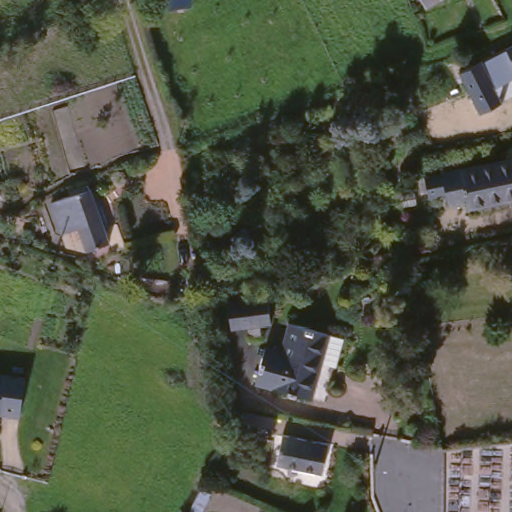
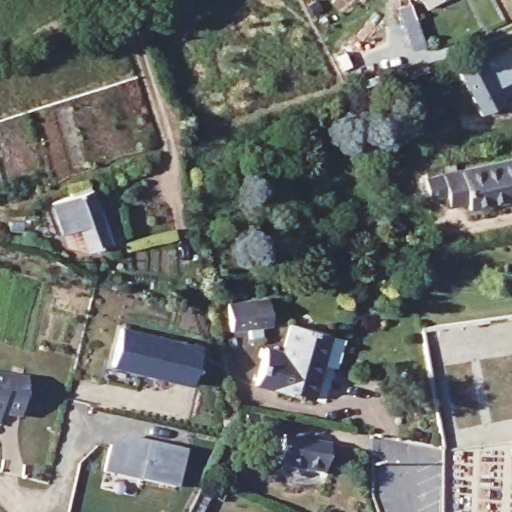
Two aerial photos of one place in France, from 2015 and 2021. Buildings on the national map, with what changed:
unchanged [(446,1),(428,10),(422,0),(448,0),(446,1)]
unchanged [(512,59),(508,50),(512,48),(512,59)]
unchanged [(459,74),(508,50),(512,59),(512,78),(493,86),(499,101),(479,113),(459,74)]
unchanged [(512,204),(469,211),(466,204),(449,205),(446,198),(426,198),(426,181),(443,172),(512,162),(512,204)]
unchanged [(115,245),(88,251),(83,233),(66,236),(56,205),(104,193),(115,245)]
unchanged [(230,302),(267,295),(273,327),(238,335),(230,302)]
unchanged [(336,371),(325,368),(314,401),(257,388),(266,352),(283,356),(291,327),(344,341),(336,371)]
new [(117,332),(196,350),(188,385),(173,382),(173,384),(109,369),(117,332)]
unchanged [(25,422),(4,420),(1,429),(0,429),(0,379),(29,385),(25,422)]
unchanged [(224,411),(254,416),(249,436),(221,430),(224,411)]
unchanged [(278,467),(284,438),(328,446),(326,472),(278,467)]
new [(114,453),(129,444),(188,457),(180,494),(109,478),(114,453)]

